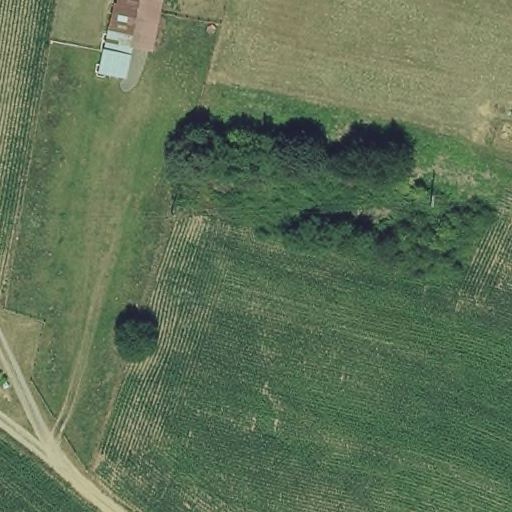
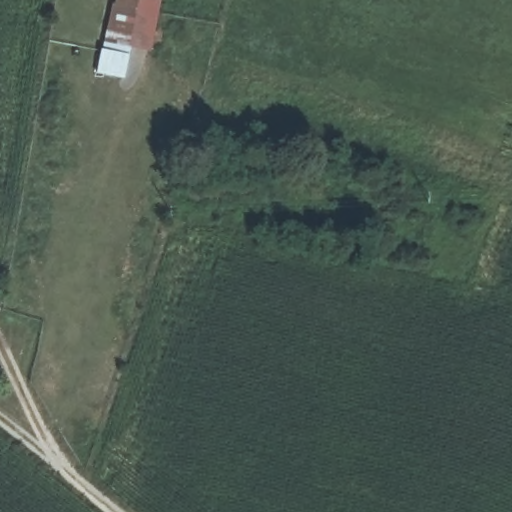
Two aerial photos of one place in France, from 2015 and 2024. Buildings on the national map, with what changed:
unchanged [(167,1),(156,55),(136,49),(128,77),(102,70),(118,0),(162,0),(167,1)]
unchanged [(416,189),(413,212),(383,207),(388,185),(416,189)]

